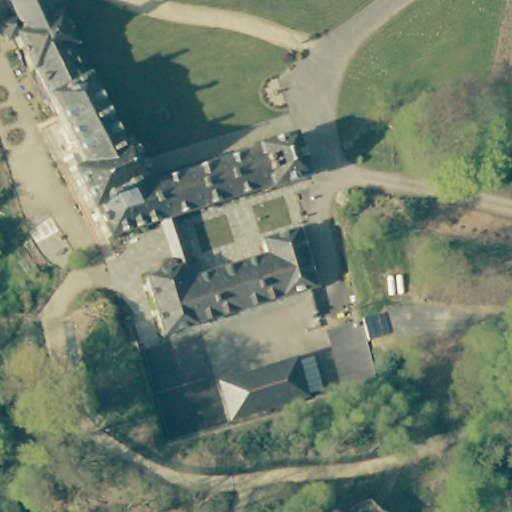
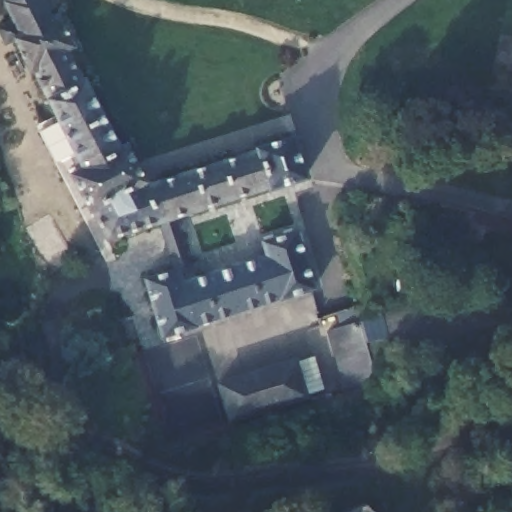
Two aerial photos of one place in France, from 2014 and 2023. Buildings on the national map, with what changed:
unchanged [(89,208),(71,171),(80,165),(33,70),(26,71),(12,39),(6,40),(0,24),(0,13),(4,10),(1,0),(46,0),(53,15),(59,15),(72,45),(66,50),(119,149),(124,148),(144,186),(251,152),(250,147),(287,134),(302,179),(107,239),(91,206),(89,208)]
unchanged [(145,280),(176,270),(181,285),(267,256),(262,240),(295,230),(314,288),(164,337),(145,280)]
unchanged [(340,329),(359,323),(380,385),(361,391),(340,329)]
unchanged [(220,380),(292,355),(303,392),(234,416),(220,380)]
unchanged [(376,512),(351,512),(366,505),(374,510),(376,512)]

